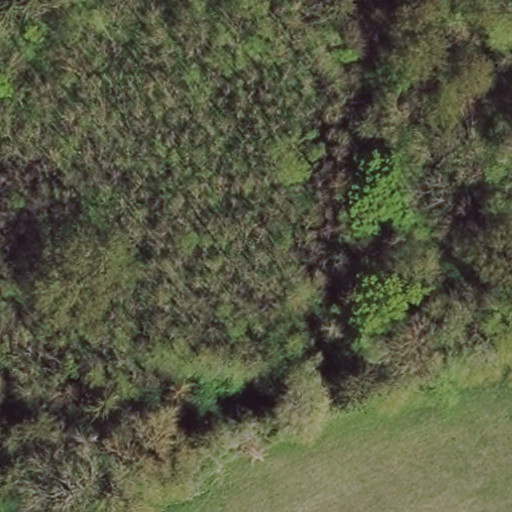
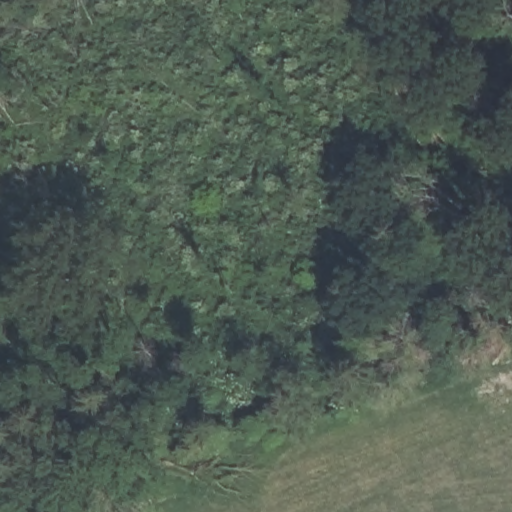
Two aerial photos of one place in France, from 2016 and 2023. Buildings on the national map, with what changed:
[]

